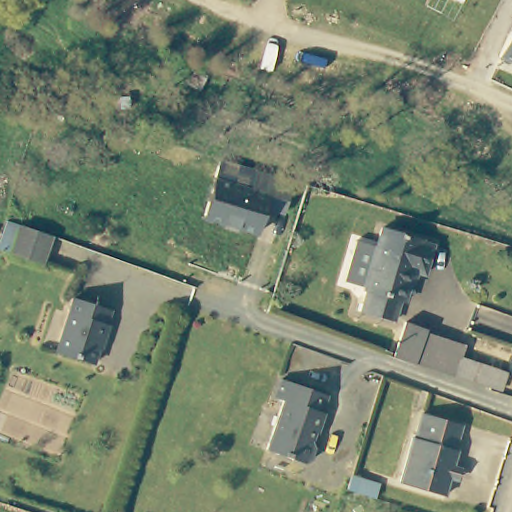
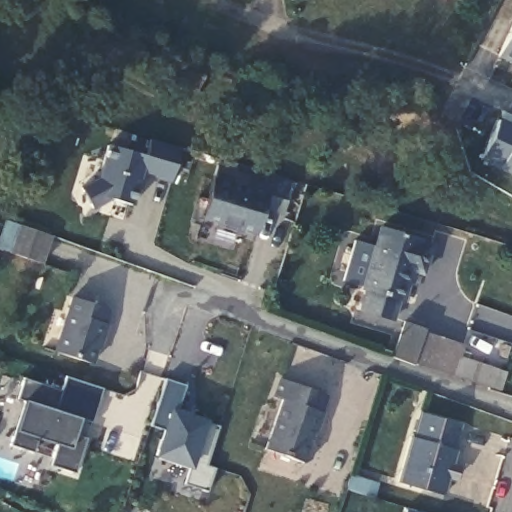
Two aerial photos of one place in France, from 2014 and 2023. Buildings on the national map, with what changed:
unchanged [(424,4),(426,0),(461,0),(451,19),(424,4)]
new [(499,55),(512,26),(512,61),(499,55)]
unchanged [(257,51),(249,79),(212,66),(182,55),(187,41),(216,52),(221,36),(257,51)]
new [(512,124),(512,174),(500,168),(480,161),(499,119),(512,124)]
new [(144,154),(149,141),(181,150),(170,183),(143,176),(132,207),(109,199),(90,210),(78,188),(97,177),(107,144),(144,154)]
unchanged [(261,208),(254,234),(201,219),(212,181),(248,191),(253,172),(289,182),(284,202),(281,213),(261,208)]
unchanged [(9,253),(0,250),(0,230),(3,220),(19,225),(51,237),(40,265),(9,253)]
unchanged [(437,245),(429,275),(418,272),(408,305),(403,304),(397,323),(366,314),(373,292),(350,283),(362,243),(382,249),(387,230),(437,245)]
unchanged [(109,314),(105,328),(107,329),(101,345),(99,344),(91,367),(54,355),(72,300),(109,314)]
unchanged [(461,346),(457,358),(492,370),(487,387),(413,361),(421,333),(461,346)]
new [(91,421),(78,418),(74,433),(85,438),(75,473),(50,465),(56,445),(35,438),(32,453),(8,445),(15,431),(24,400),(17,399),(24,378),(61,391),(66,378),(101,388),(91,421)]
new [(206,466),(215,470),(208,490),(184,484),(188,468),(154,457),(162,430),(150,426),(167,379),(184,386),(178,410),(219,426),(206,466)]
unchanged [(329,396),(323,416),(327,417),(322,434),(318,432),(314,445),(319,447),(314,466),(268,451),(285,402),(275,398),(282,379),(329,396)]
unchanged [(457,421),(452,448),(458,449),(446,494),(400,484),(411,438),(414,439),(420,413),(457,421)]
unchanged [(383,484),(379,500),(352,491),(356,476),(383,484)]
new [(406,509),(417,512),(406,512),(406,509)]

